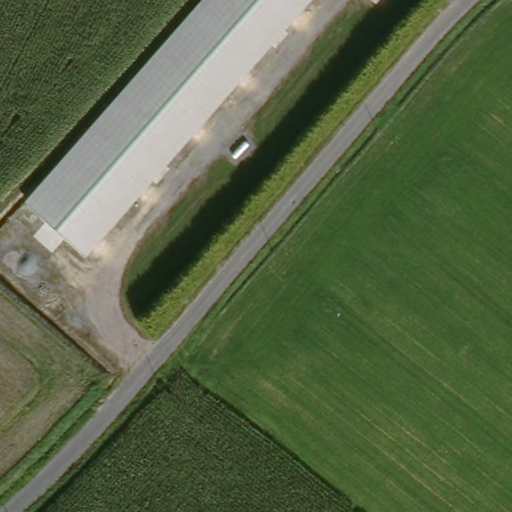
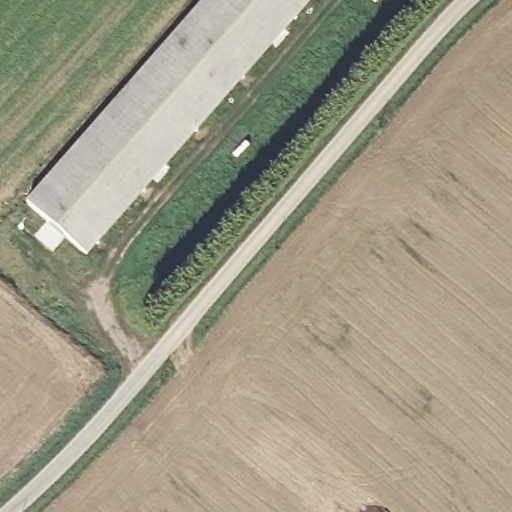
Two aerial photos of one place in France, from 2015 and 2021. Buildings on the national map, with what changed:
unchanged [(78,261),(20,207),(207,0),(314,0),(78,261)]

